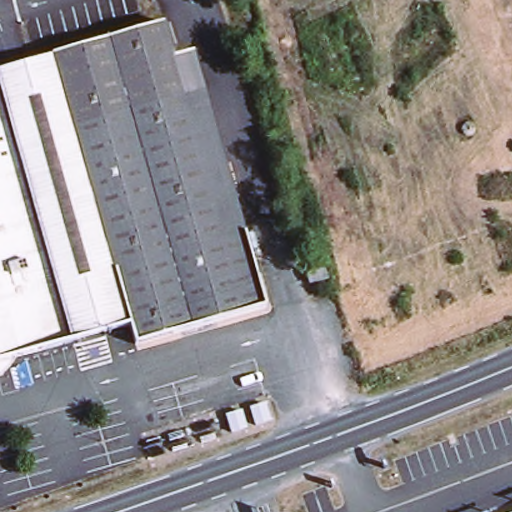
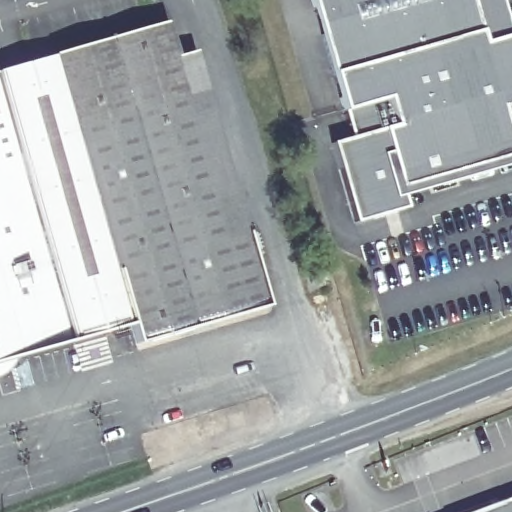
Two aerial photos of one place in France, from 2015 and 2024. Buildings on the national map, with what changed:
new [(405,209),(354,224),(331,145),(351,140),(343,111),(332,75),(311,0),(499,0),(508,32),(512,31),(512,165),(402,197),(405,209)]
unchanged [(34,60),(165,24),(177,62),(191,114),(210,109),(235,198),(245,235),(266,306),(136,343),(130,323),(110,330),(0,361),(0,70),(34,60)]
unchanged [(196,57),(210,109),(191,114),(177,62),(196,57)]
unchanged [(0,375),(0,366),(2,374),(0,375)]

